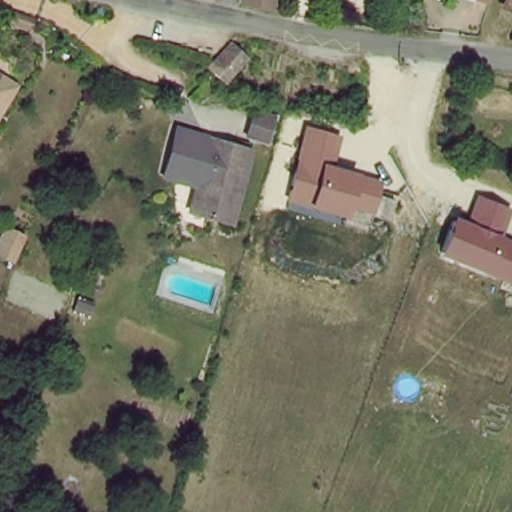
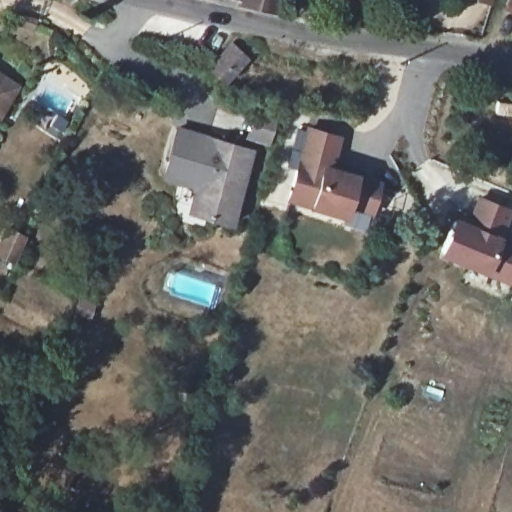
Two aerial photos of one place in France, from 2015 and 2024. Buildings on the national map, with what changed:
unchanged [(252,0),(280,0),(278,5),(252,0)]
unchanged [(473,0),(491,0),(490,5),(473,1),(473,0)]
unchanged [(506,0),(512,0),(512,13),(502,9),(506,0)]
unchanged [(234,44),(249,60),(227,81),(210,65),(234,44)]
unchanged [(13,79),(0,100),(0,72),(13,79)]
unchanged [(274,150),(256,139),(269,119),(286,129),(274,150)]
unchanged [(194,189),(160,180),(177,127),(215,139),(194,189)]
unchanged [(379,197),(397,201),(390,222),(370,217),(365,232),(340,225),(343,216),(286,202),(306,127),(344,137),(333,167),(378,179),(379,197)]
unchanged [(190,198),(194,189),(215,139),(256,156),(228,225),(209,217),(186,207),(190,198)]
unchanged [(467,222),(477,196),(512,210),(512,215),(502,236),(512,240),(512,285),(439,255),(457,217),(467,222)]
unchanged [(2,225),(29,237),(14,263),(0,258),(0,229),(2,225)]

